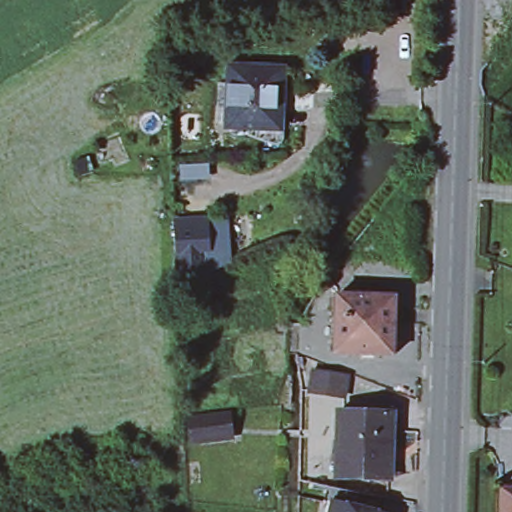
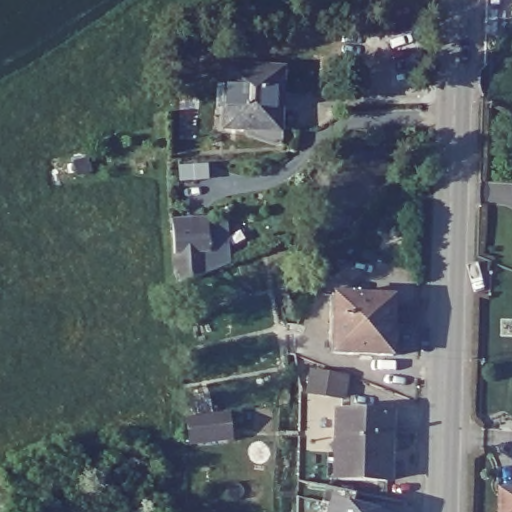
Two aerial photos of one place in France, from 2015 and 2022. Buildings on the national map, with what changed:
unchanged [(273,130),(252,128),(224,126),(228,66),(282,68),(281,93),(275,93),(273,124),(273,130)]
unchanged [(231,214),(233,261),(179,281),(174,214),(231,214)]
unchanged [(336,295),(394,296),(393,355),(334,353),(336,295)]
unchanged [(311,371),(346,377),(344,396),(308,391),(311,371)]
unchanged [(337,411),(393,413),(391,448),(388,448),(388,481),(335,479),(337,411)]
unchanged [(190,421),(228,417),(229,436),(192,440),(190,421)]
unchanged [(333,505),(329,503),(323,502),(324,498),(328,486),(357,491),(353,510),(360,512),(332,512),(333,505)]
unchanged [(500,490),(512,491),(512,512),(500,512),(500,490)]

